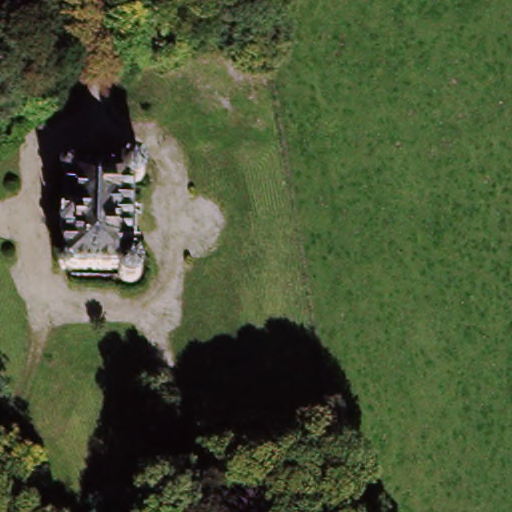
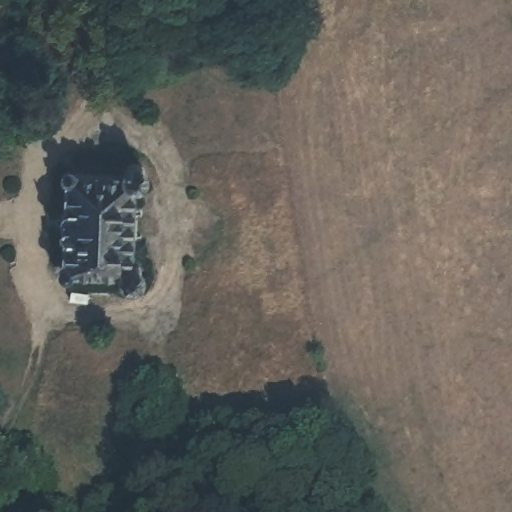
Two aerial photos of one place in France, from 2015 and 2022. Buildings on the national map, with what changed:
unchanged [(52,184),(50,155),(100,159),(100,144),(122,134),(140,153),(133,169),(119,185),(120,247),(134,252),(130,267),(120,279),(99,282),(98,269),(47,268),(42,187),(52,184)]

